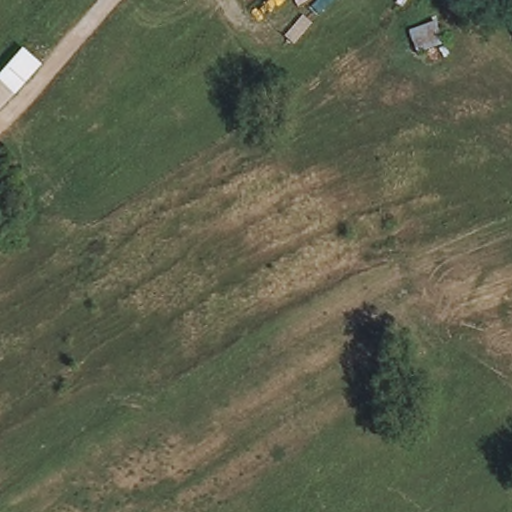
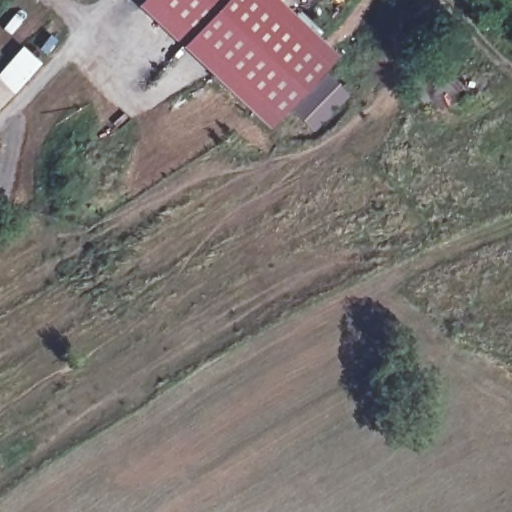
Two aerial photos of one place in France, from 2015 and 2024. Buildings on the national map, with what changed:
new [(281,0),(341,56),(327,71),(350,94),(317,130),(292,108),(273,129),(183,46),(138,5),(142,0),(281,0)]
new [(23,46),(42,64),(0,111),(0,72),(23,46)]

